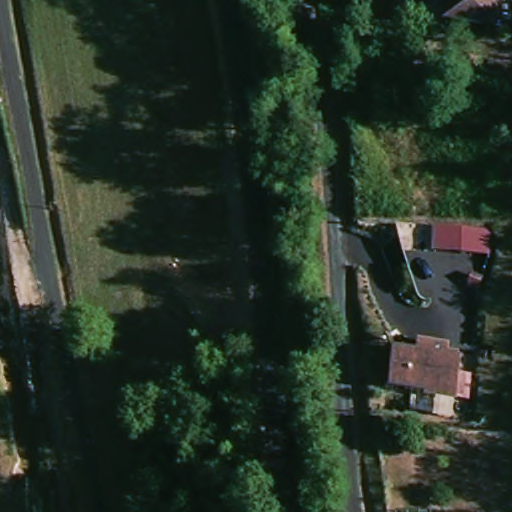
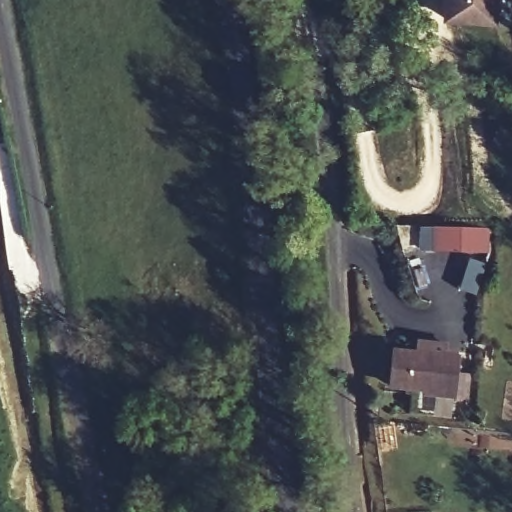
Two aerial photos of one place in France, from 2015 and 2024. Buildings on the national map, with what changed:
unchanged [(484,25),(441,21),(442,0),(486,0),(484,25)]
unchanged [(469,227),(481,297),(419,300),(399,227),(469,227)]
unchanged [(424,398),(422,393),(389,391),(389,357),(459,362),(457,398),(424,398)]

